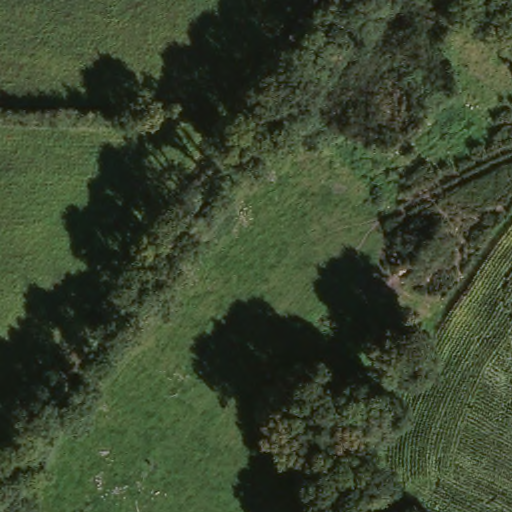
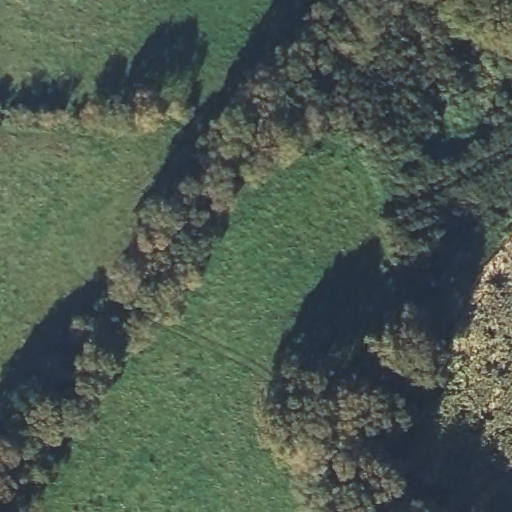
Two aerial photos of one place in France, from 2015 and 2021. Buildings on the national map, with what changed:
[]

